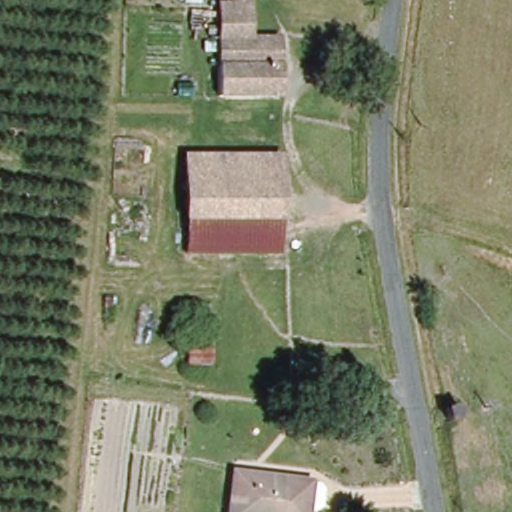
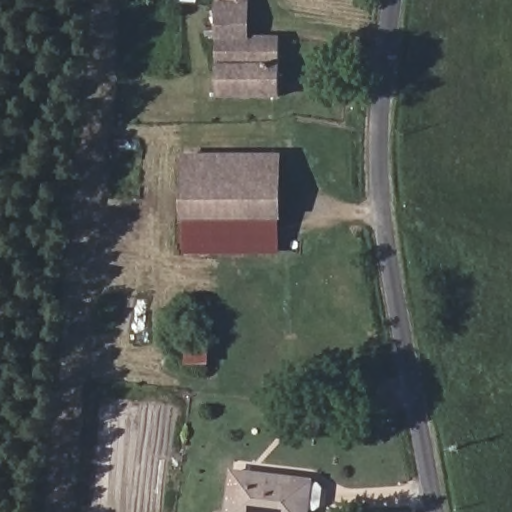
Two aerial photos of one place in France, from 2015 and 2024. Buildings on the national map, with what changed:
unchanged [(220,35),(220,2),(220,0),(250,0),(250,2),(251,34),(282,32),(283,90),(222,92),(220,35)]
unchanged [(187,222),(186,157),(280,155),(285,218),(187,222)]
unchanged [(287,249),(188,252),(187,222),(285,218),(287,249)]
unchanged [(463,420),(445,424),(441,409),(460,405),(463,420)]
unchanged [(313,509),(311,512),(299,512),(230,512),(235,475),(317,487),(313,509)]

